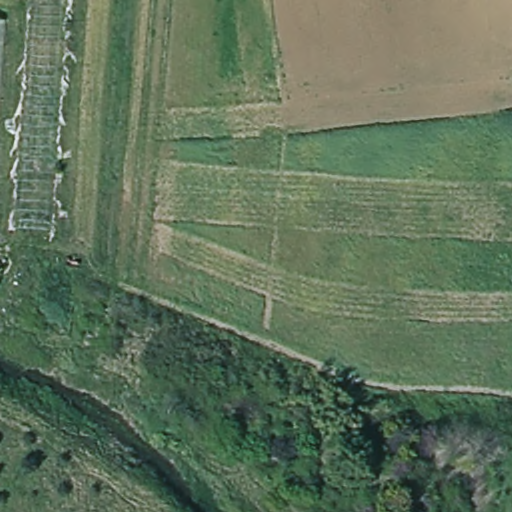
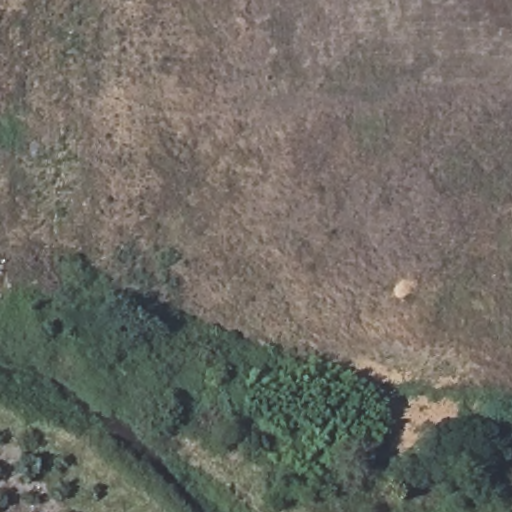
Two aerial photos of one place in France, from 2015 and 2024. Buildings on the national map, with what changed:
demolished [(13,230),(29,0),(70,0),(53,232),(13,230)]
demolished [(0,125),(0,16),(9,16),(0,125)]

